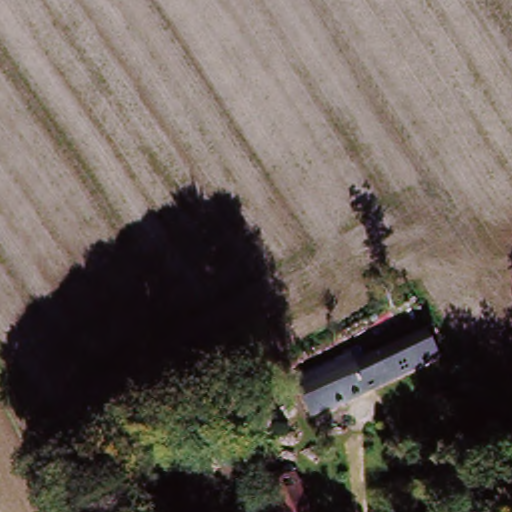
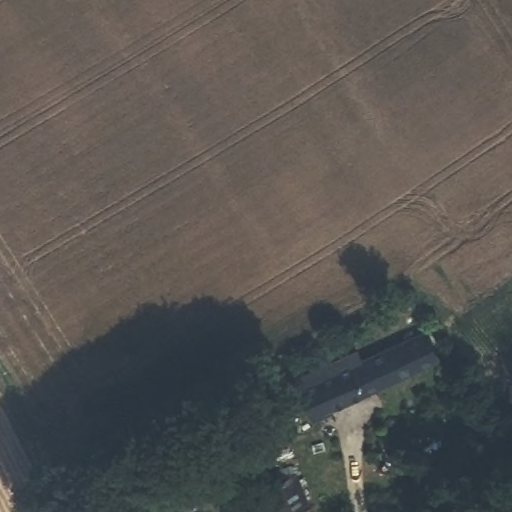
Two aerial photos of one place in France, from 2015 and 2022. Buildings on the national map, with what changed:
unchanged [(344,357),(350,370),(426,336),(437,361),(302,422),(285,383),(344,357)]
unchanged [(309,512),(280,512),(263,469),(290,459),(309,512)]

